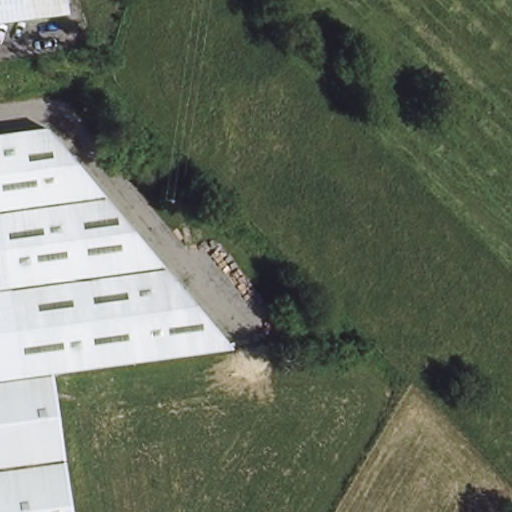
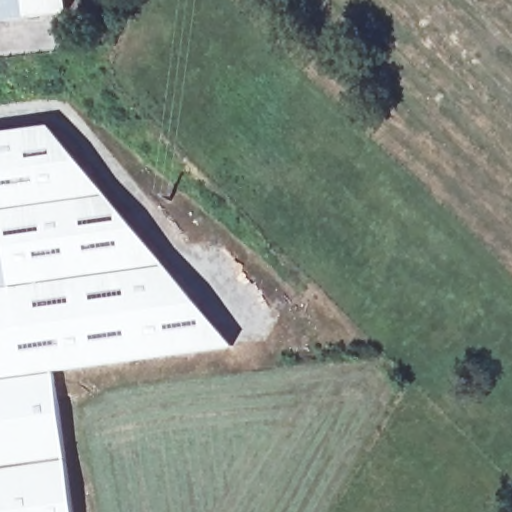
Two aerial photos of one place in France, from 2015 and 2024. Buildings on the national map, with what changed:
unchanged [(0,18),(0,0),(73,0),(75,7),(0,18)]
unchanged [(236,356),(51,381),(72,512),(0,512),(0,142),(51,137),(236,356)]

